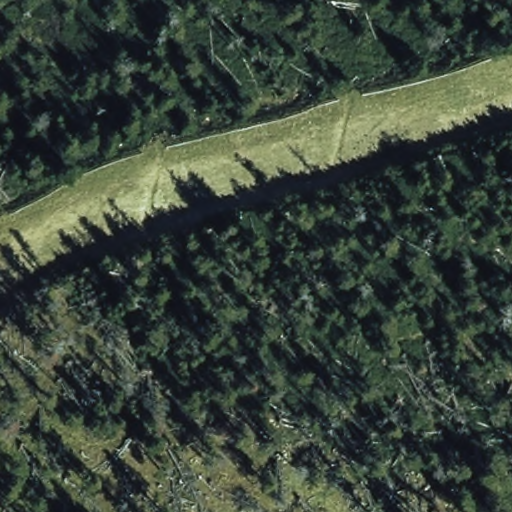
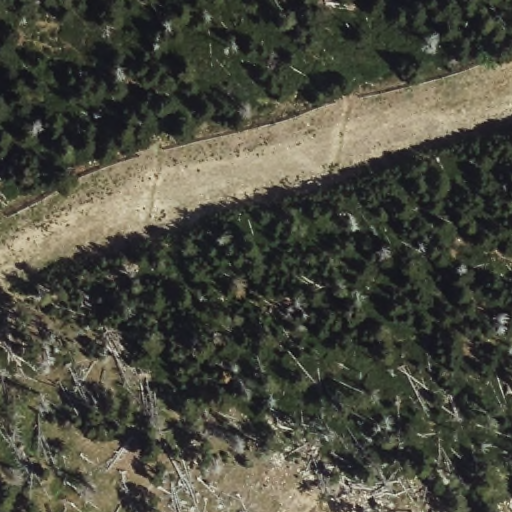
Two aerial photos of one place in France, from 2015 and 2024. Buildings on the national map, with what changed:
[]

